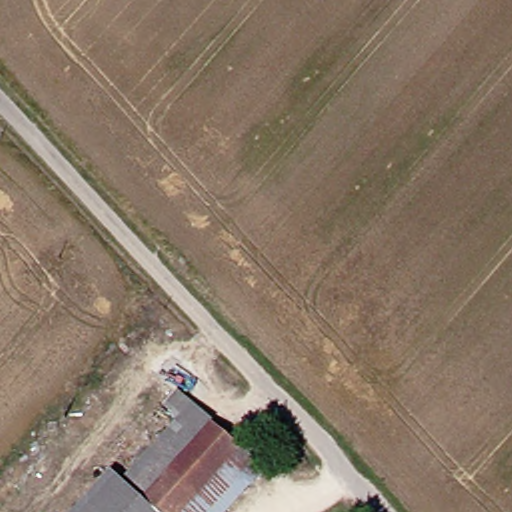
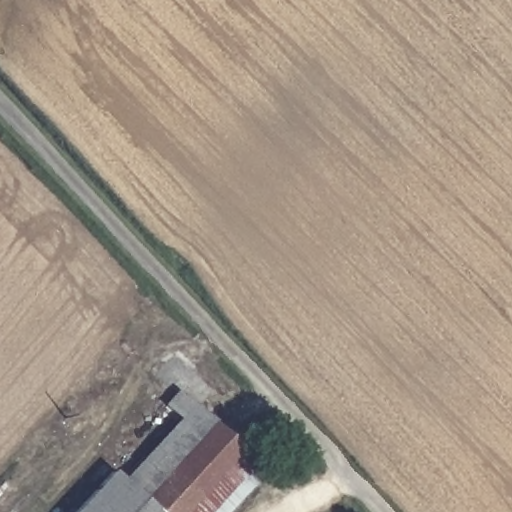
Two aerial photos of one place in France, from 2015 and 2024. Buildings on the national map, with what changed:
unchanged [(161,411),(174,397),(231,451),(177,512),(147,512),(117,485),(174,422),(161,411)]
unchanged [(257,474),(223,512),(177,512),(231,451),(257,474)]
unchanged [(117,485),(147,512),(72,512),(105,474),(117,485)]

